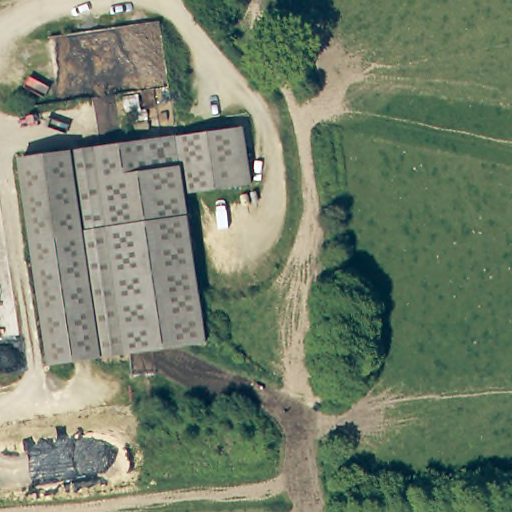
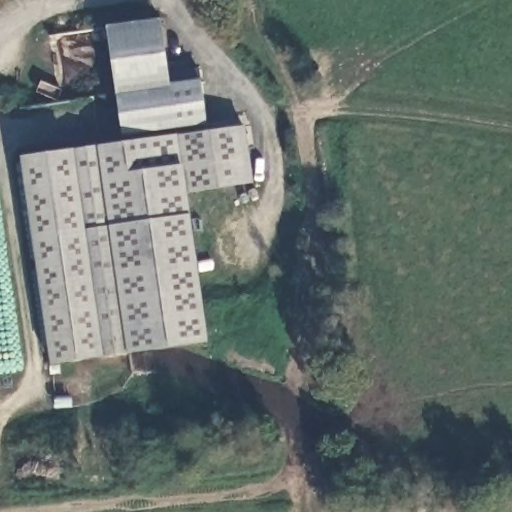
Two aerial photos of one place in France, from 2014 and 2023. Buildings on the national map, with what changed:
new [(160,19),(170,82),(200,79),(207,125),(121,137),(106,26),(160,19)]
unchanged [(250,189),(184,194),(199,342),(45,356),(23,152),(244,132),(250,189)]

